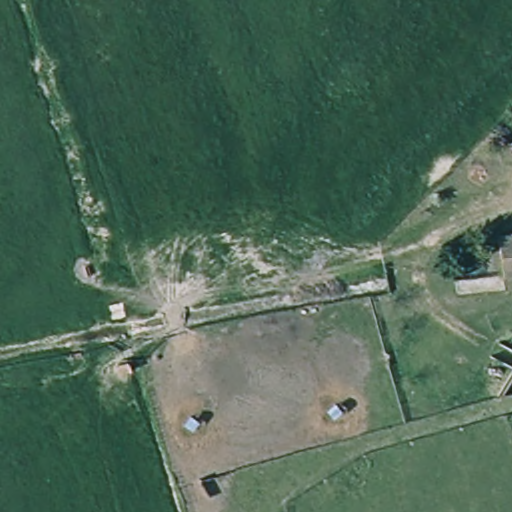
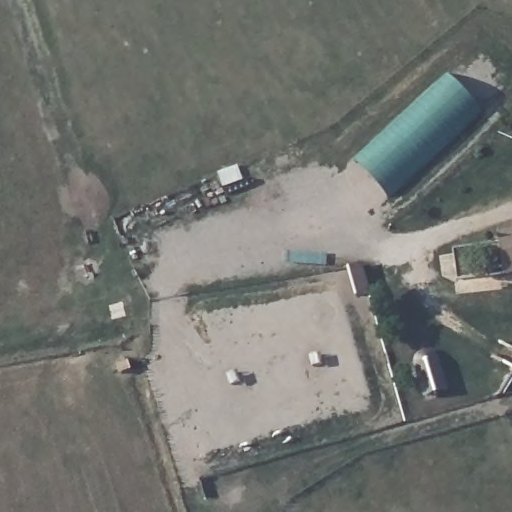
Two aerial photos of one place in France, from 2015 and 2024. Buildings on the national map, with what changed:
new [(447,77),(477,108),(385,194),(356,162),(447,77)]
unchanged [(501,265),(498,242),(512,240),(512,263),(501,265)]

